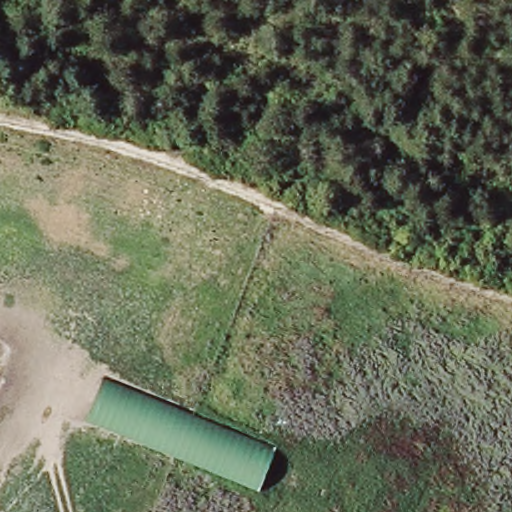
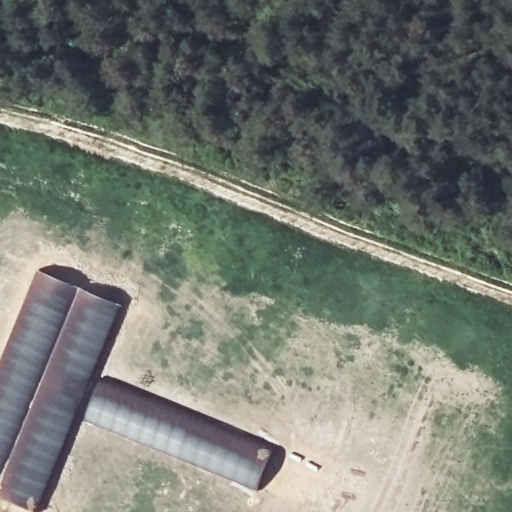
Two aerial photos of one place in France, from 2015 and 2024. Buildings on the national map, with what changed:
new [(35,512),(0,497),(0,357),(37,267),(124,303),(41,512),(35,512)]
unchanged [(101,380),(273,448),(257,490),(85,420),(101,380)]

